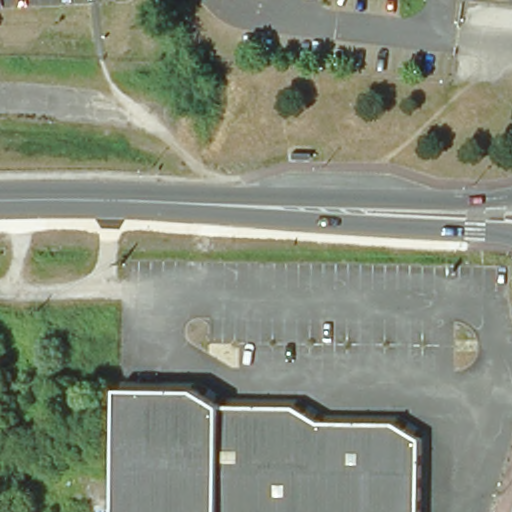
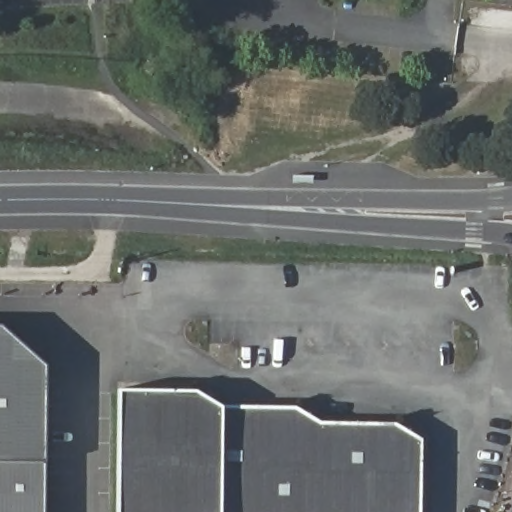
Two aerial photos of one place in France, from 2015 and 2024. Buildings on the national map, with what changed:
unchanged [(260,0),(274,0),(266,7),(260,0)]
new [(44,512),(0,512),(0,325),(4,325),(46,366),(45,462),(44,512)]
unchanged [(117,384),(190,385),(217,401),(294,402),(320,418),(395,419),(421,437),(419,512),(114,512),(117,384)]

